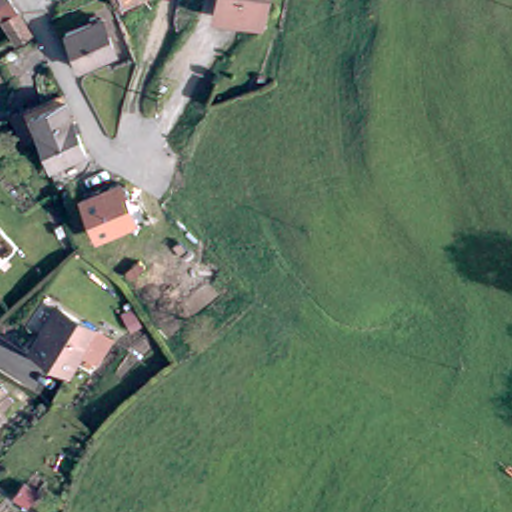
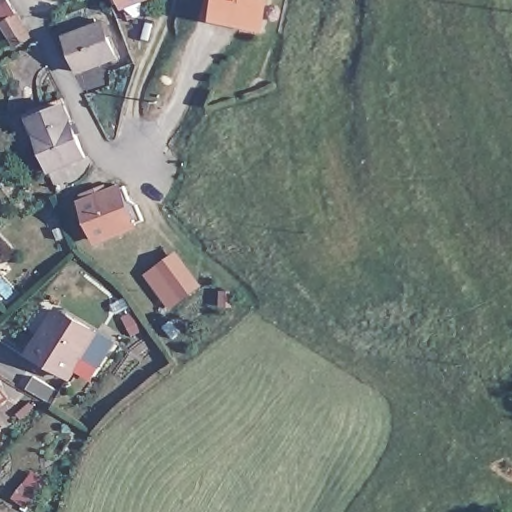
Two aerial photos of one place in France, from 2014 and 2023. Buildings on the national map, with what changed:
unchanged [(0,26),(0,0),(5,0),(5,1),(14,15),(27,35),(26,36),(13,45),(0,26)]
unchanged [(117,0),(136,0),(119,6),(117,0)]
unchanged [(218,11),(220,0),(265,0),(261,20),(218,11)]
unchanged [(93,21),(92,17),(98,15),(99,19),(103,17),(114,52),(78,66),(66,31),(93,21)]
unchanged [(23,150),(14,122),(63,102),(68,109),(72,125),(37,139),(39,145),(23,150)]
unchanged [(72,125),(73,125),(86,160),(50,174),(39,145),(37,139),(72,125)]
unchanged [(118,181),(131,215),(126,220),(90,235),(77,199),(103,189),(101,185),(108,182),(109,185),(113,184),(118,181)]
new [(174,255),(195,283),(178,296),(168,303),(148,276),(158,268),(174,255)]
unchanged [(110,340),(95,362),(79,352),(66,373),(28,350),(58,306),(110,340)]

